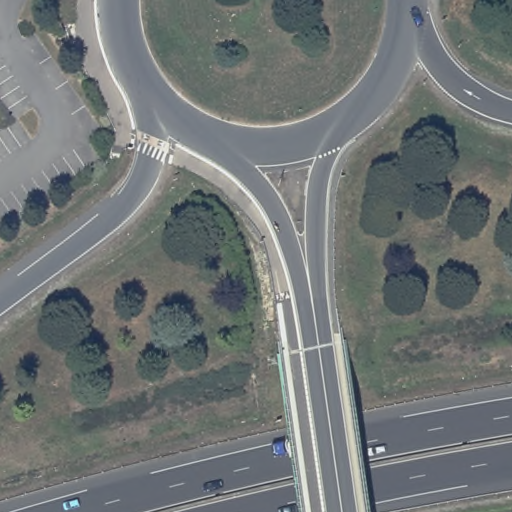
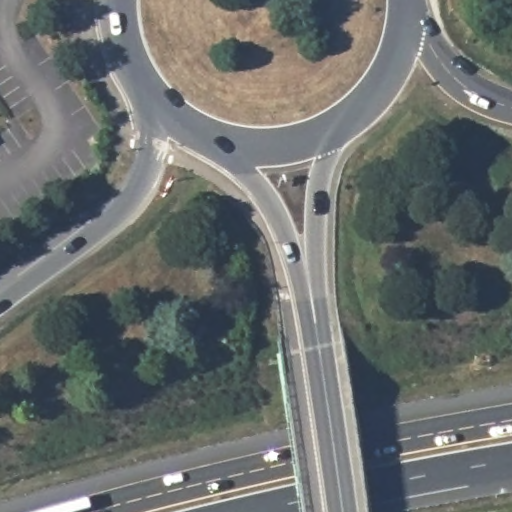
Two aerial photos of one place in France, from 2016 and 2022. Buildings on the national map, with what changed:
[]

